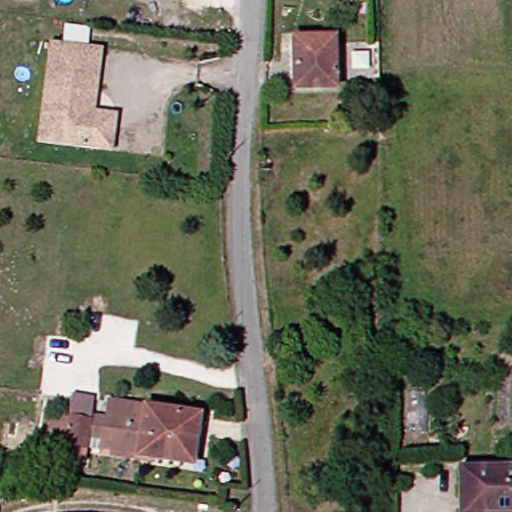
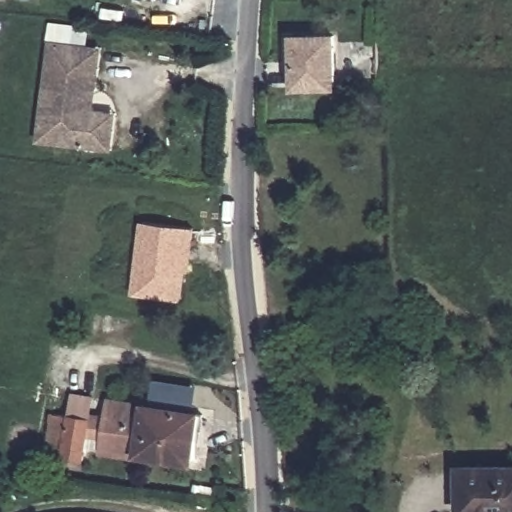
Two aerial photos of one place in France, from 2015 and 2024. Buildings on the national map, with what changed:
unchanged [(338,87),(297,88),(296,37),(337,36),(338,87)]
unchanged [(118,150),(105,149),(89,146),(44,140),(56,41),(95,46),(106,48),(108,48),(100,110),(110,112),(123,114),(118,150)]
unchanged [(274,170),(261,170),(262,160),(274,160),(274,170)]
new [(192,271),(186,270),(183,301),(131,293),(140,220),(196,227),(192,271)]
unchanged [(104,462),(106,453),(86,450),(85,463),(61,459),(46,457),(53,417),(68,420),(71,397),(91,401),(88,423),(91,424),(91,419),(110,422),(113,405),(201,420),(193,467),(157,462),(156,469),(104,462)]
unchanged [(463,512),(463,467),(512,466),(512,512),(463,512)]

